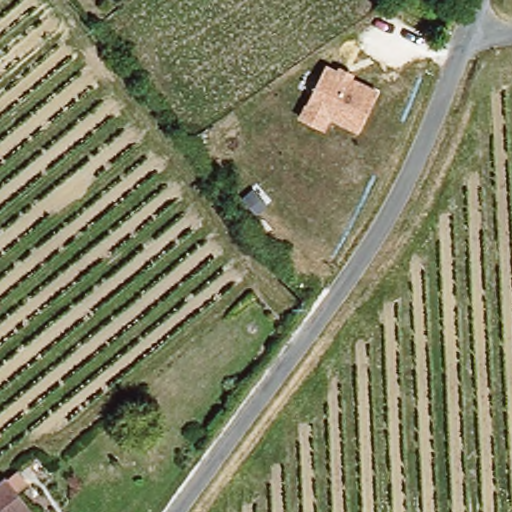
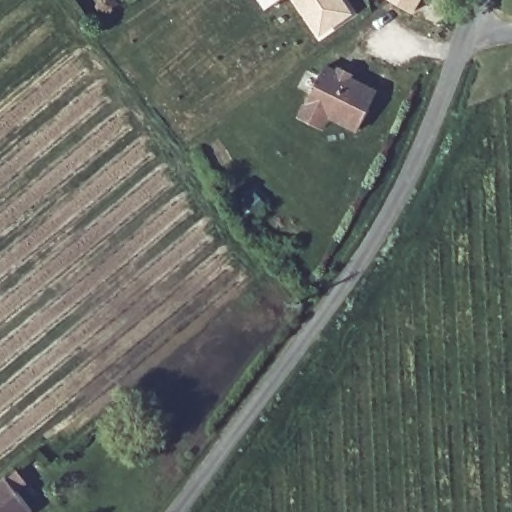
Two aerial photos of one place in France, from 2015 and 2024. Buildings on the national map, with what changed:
new [(319,40),(289,0),(346,0),(355,14),(319,40)]
new [(390,0),(422,0),(414,14),(390,0)]
unchanged [(324,62),(337,69),(340,64),(355,71),(353,76),(379,87),(360,131),(330,117),(325,127),(298,115),(324,62)]
unchanged [(16,470),(27,480),(17,490),(34,509),(30,512),(0,512),(0,481),(16,470)]

